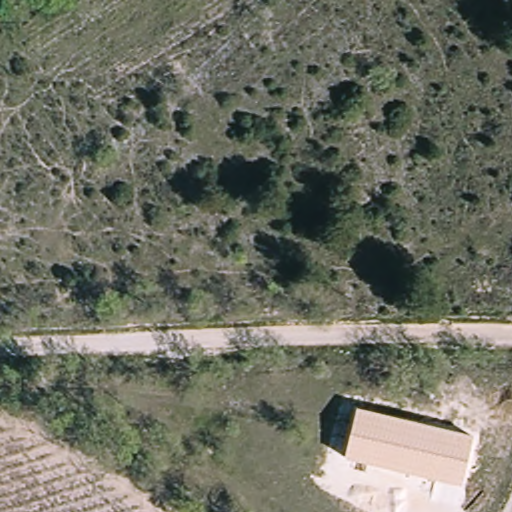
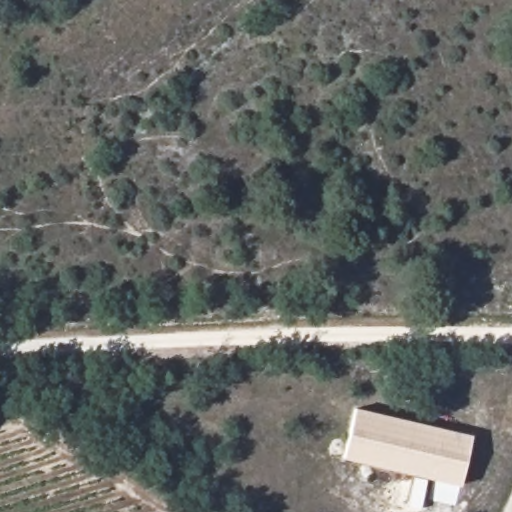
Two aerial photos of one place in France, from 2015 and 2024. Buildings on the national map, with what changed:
unchanged [(346,458),(358,407),(472,437),(460,484),(346,458)]

